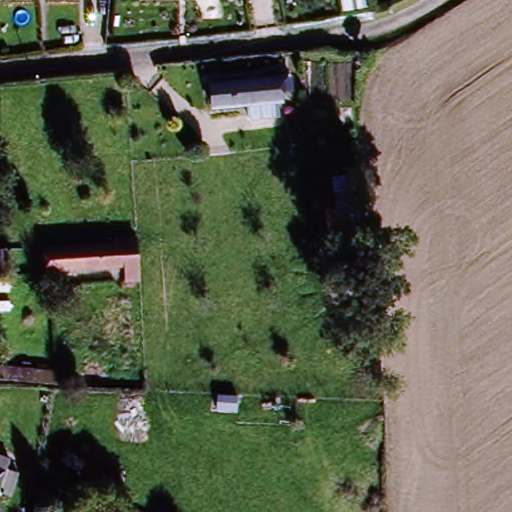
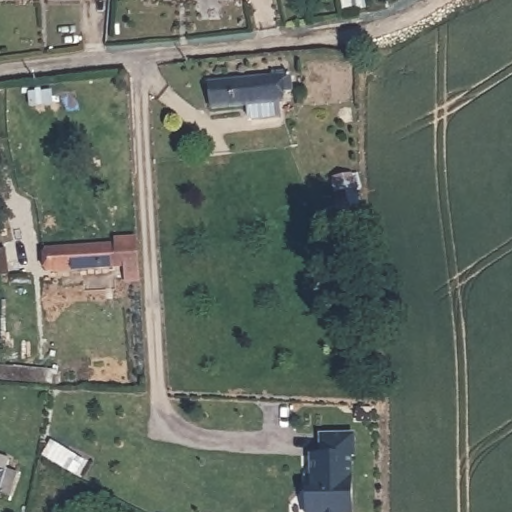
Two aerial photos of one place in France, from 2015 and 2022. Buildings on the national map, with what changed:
unchanged [(0,2),(0,0),(79,0),(79,3),(0,2)]
unchanged [(110,0),(110,3),(89,1),(89,0),(110,0)]
unchanged [(147,1),(148,0),(221,0),(221,5),(147,1)]
unchanged [(211,89),(270,85),(271,105),(212,108),(211,89)]
unchanged [(331,248),(329,229),(344,228),(345,247),(331,248)]
unchanged [(129,288),(127,275),(46,281),(44,251),(117,244),(116,235),(136,234),(136,242),(140,274),(140,287),(129,288)]
unchanged [(0,260),(3,260),(6,283),(0,284),(0,260)]
unchanged [(332,266),(347,265),(350,309),(335,310),(332,266)]
unchanged [(66,381),(6,382),(5,369),(66,369),(66,381)]
new [(356,432),(357,457),(353,457),(354,512),(307,512),(307,476),(311,476),(310,454),(320,453),(320,434),(356,432)]
unchanged [(0,488),(0,469),(5,471),(0,488)]

